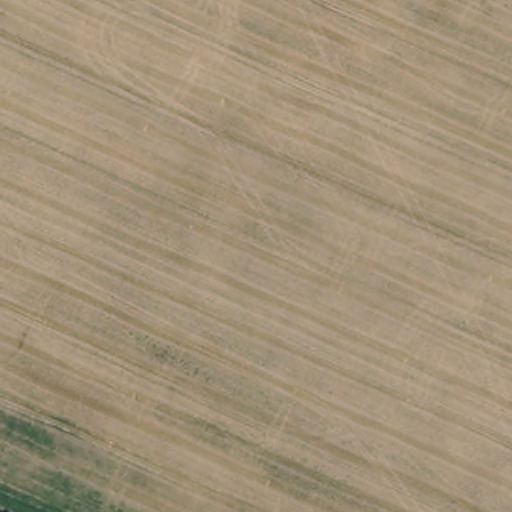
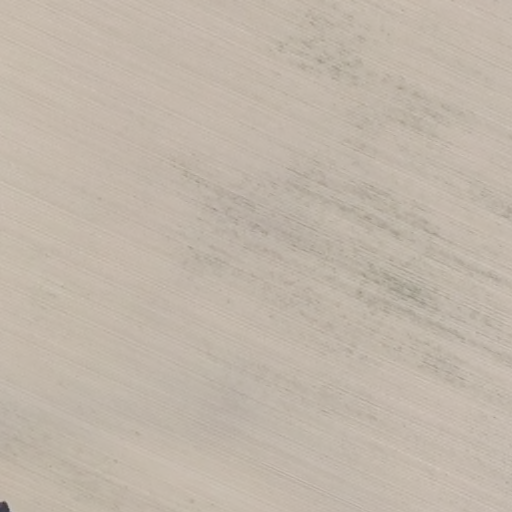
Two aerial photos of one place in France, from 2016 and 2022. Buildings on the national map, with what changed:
[]

